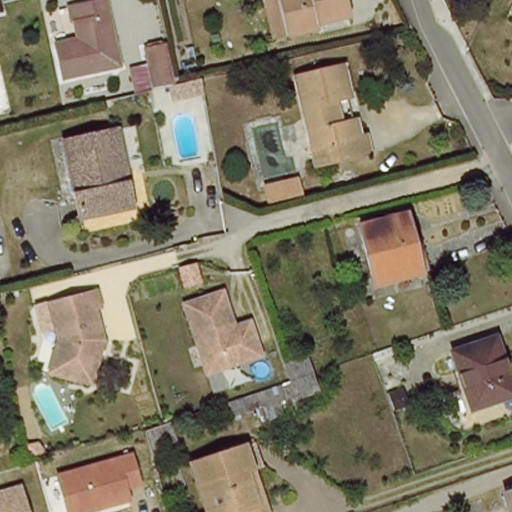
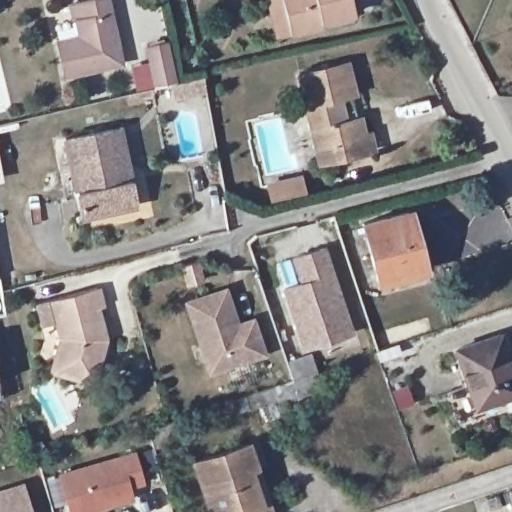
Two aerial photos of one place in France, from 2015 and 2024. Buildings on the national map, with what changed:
unchanged [(102,0),(117,68),(60,81),(53,43),(73,38),(71,23),(77,22),(74,6),(102,0)]
unchanged [(266,0),(267,0),(350,0),(354,17),(306,29),(307,33),(288,38),(275,41),(266,0)]
unchanged [(173,79),(158,82),(150,47),(164,43),(173,79)]
unchanged [(315,141),(301,74),(353,62),(368,126),(375,124),(379,145),(337,156),(320,160),(315,141)]
unchanged [(89,213),(72,136),(101,130),(118,127),(130,172),(139,203),(89,213)]
new [(4,180),(0,181),(0,163),(4,180)]
unchanged [(311,172),(314,187),(281,194),(278,179),(311,172)]
unchanged [(411,210),(428,270),(383,283),(365,223),(411,210)]
new [(302,287),(294,262),(322,253),(349,336),(303,352),(283,293),(302,287)]
unchanged [(100,306),(97,307),(104,337),(91,381),(50,369),(58,336),(52,313),(37,317),(34,302),(49,298),(96,287),(100,306)]
unchanged [(233,320),(228,321),(229,327),(251,320),(262,353),(246,359),(241,345),(227,349),(231,363),(207,371),(185,302),(223,290),(233,320)]
unchanged [(512,363),(512,396),(477,406),(461,350),(505,338),(512,363)]
demolished [(296,367),(291,350),(313,343),(319,360),(296,367)]
new [(1,399),(0,399),(0,397),(1,399)]
unchanged [(259,469),(249,472),(261,512),(208,512),(193,461),(250,445),(259,469)]
unchanged [(146,485),(132,490),(135,501),(96,512),(69,512),(60,472),(135,450),(146,485)]
unchanged [(31,512),(0,512),(0,491),(23,484),(31,512)]

